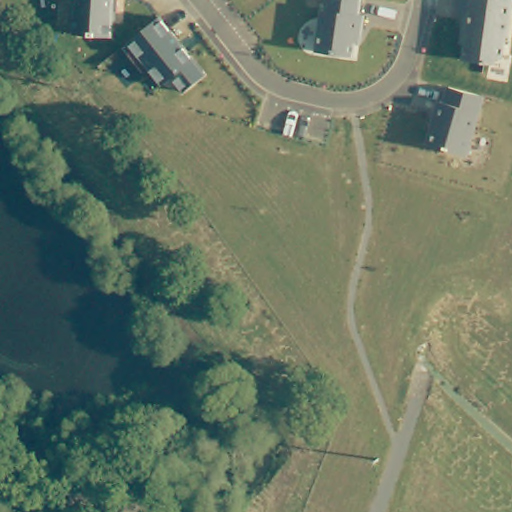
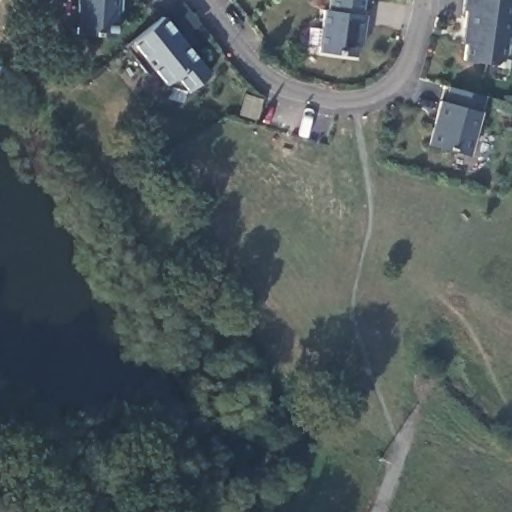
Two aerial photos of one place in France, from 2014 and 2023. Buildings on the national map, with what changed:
unchanged [(75,0),(116,0),(114,36),(75,35),(75,0)]
unchanged [(323,11),(327,12),(328,0),(362,0),(359,15),(365,16),(362,44),(355,42),(352,56),(317,52),(323,11)]
unchanged [(465,45),(461,45),(467,0),(512,0),(512,5),(503,56),(495,63),(463,62),(465,45)]
unchanged [(125,48),(160,17),(207,74),(185,94),(172,78),(160,87),(125,48)]
unchanged [(426,145),(438,101),(445,103),(450,89),(483,97),(469,156),(426,145)]

